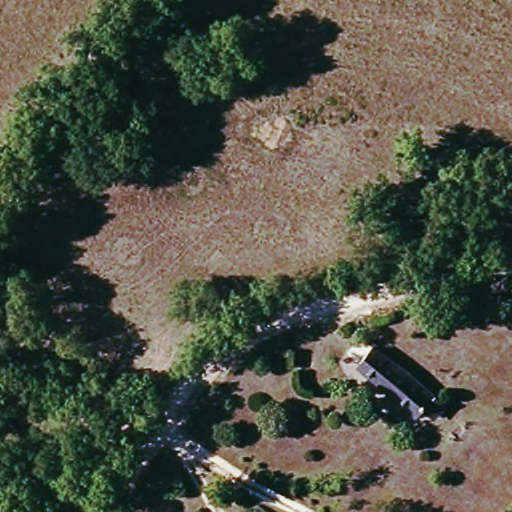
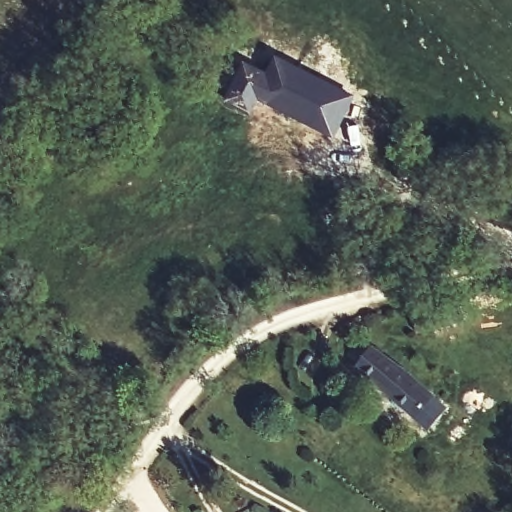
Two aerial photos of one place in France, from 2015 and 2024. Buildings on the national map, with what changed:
new [(242,57),(266,69),(275,52),(356,94),(335,141),(257,101),(249,117),(221,105),(242,57)]
unchanged [(457,315),(451,298),(477,288),(484,306),(457,315)]
unchanged [(415,417),(353,368),(369,351),(432,397),(415,417)]

